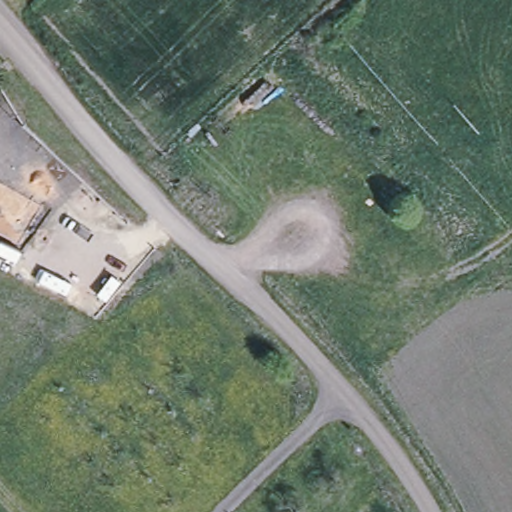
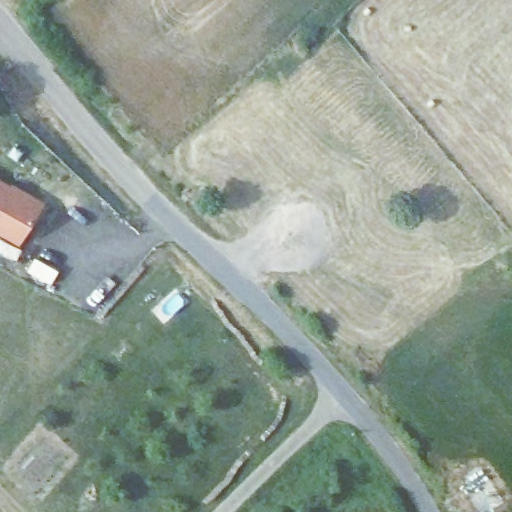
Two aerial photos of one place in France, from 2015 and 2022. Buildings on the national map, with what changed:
new [(19,245),(0,234),(0,179),(12,186),(13,183),(45,202),(19,245)]

